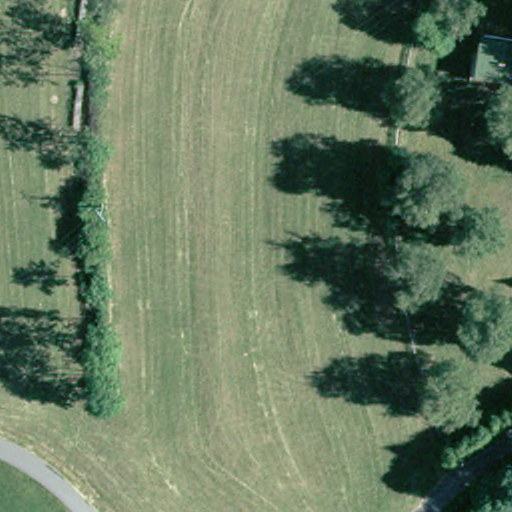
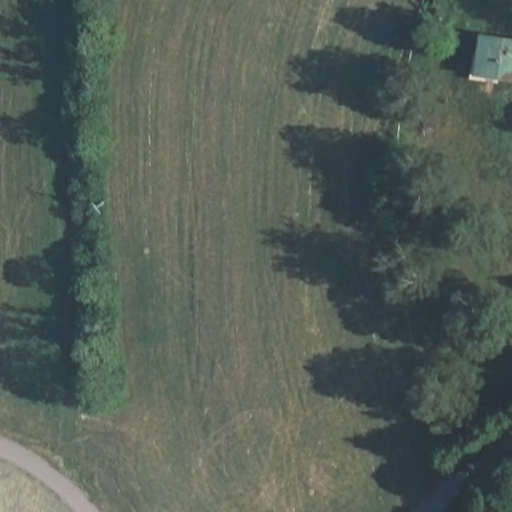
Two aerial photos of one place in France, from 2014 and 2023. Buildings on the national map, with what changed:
unchanged [(479,72),(486,34),(512,39),(512,78),(479,72)]

